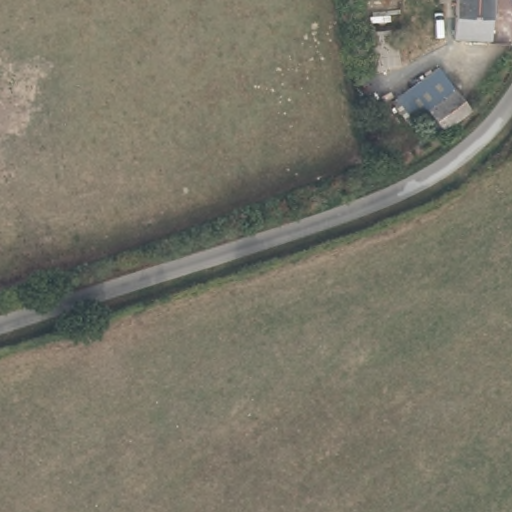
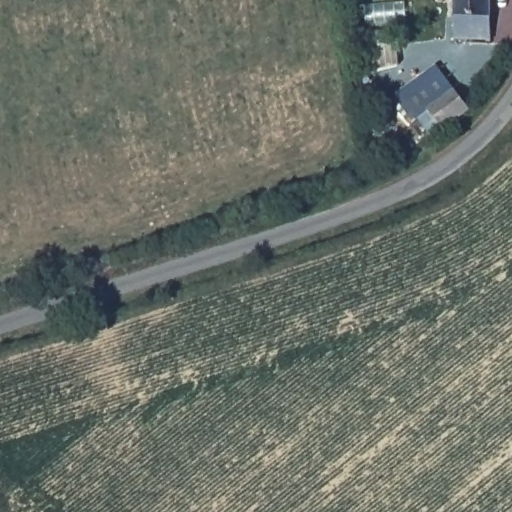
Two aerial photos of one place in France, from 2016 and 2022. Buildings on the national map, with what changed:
unchanged [(450,41),(452,0),(489,0),(486,38),(450,41)]
unchanged [(411,99),(427,89),(448,71),(457,81),(473,104),(433,141),(413,111),(411,99)]

